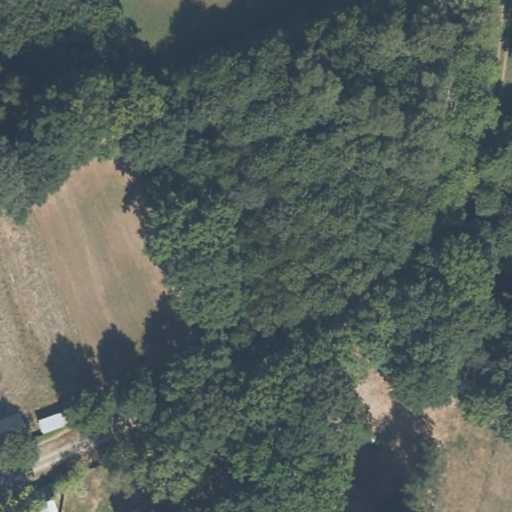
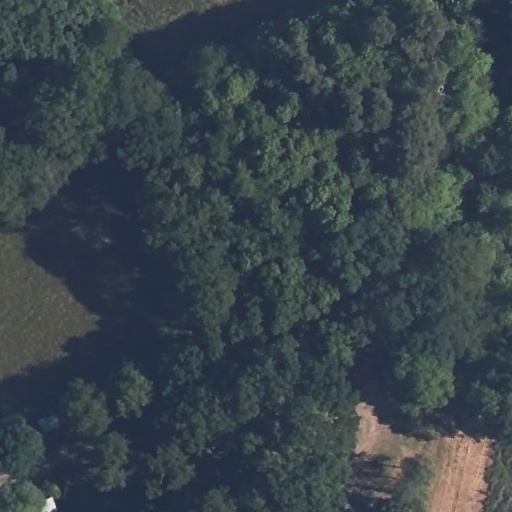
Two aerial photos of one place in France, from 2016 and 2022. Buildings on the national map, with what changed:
unchanged [(0,439),(0,422),(18,415),(22,433),(0,439)]
unchanged [(0,500),(12,495),(30,486),(42,510),(37,512),(0,512),(0,511),(0,500)]

